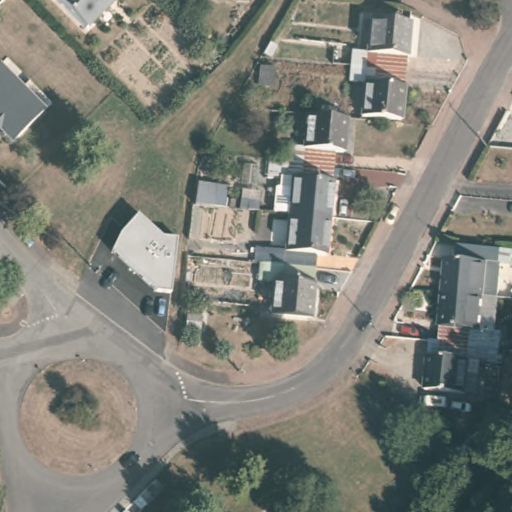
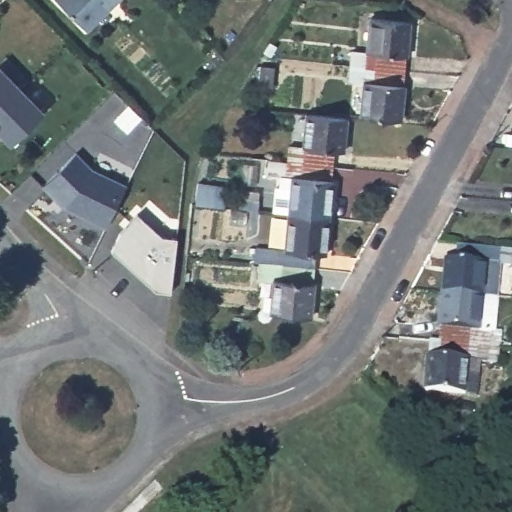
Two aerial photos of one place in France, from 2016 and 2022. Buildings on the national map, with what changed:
unchanged [(109,0),(79,29),(51,0),(109,0)]
unchanged [(350,51),(363,53),(366,20),(407,25),(403,56),(400,56),(398,72),(348,68),(350,51)]
unchanged [(0,136),(0,67),(1,66),(44,111),(9,146),(0,136)]
unchanged [(397,86),(399,86),(394,121),(354,116),(359,85),(346,84),(348,68),(398,72),(397,86)]
demolished [(226,113),(238,114),(237,134),(224,134),(226,113)]
unchanged [(287,147),(305,149),(308,114),(349,118),(344,151),(335,150),(334,165),(285,160),(287,147)]
new [(39,181),(74,150),(89,167),(123,187),(100,226),(60,204),(51,194),(39,181)]
unchanged [(291,214),(277,213),(279,186),(283,187),(284,175),(285,160),(334,165),(332,182),(334,182),(329,218),(325,254),(316,253),(314,266),(264,261),(265,248),(287,250),(291,214)]
demolished [(188,177),(213,179),(210,204),(185,202),(188,177)]
demolished [(247,195),(261,197),(260,211),(245,209),(247,195)]
unchanged [(170,291),(157,290),(113,252),(138,214),(163,238),(177,238),(170,291)]
unchanged [(499,337),(498,352),(482,350),(445,347),(446,330),(444,330),(448,297),(451,263),(453,263),(454,248),(498,252),(497,266),(506,267),(504,301),(499,301),(497,337),(499,337)]
unchanged [(313,283),(315,283),(310,321),(271,316),(275,278),(263,276),(264,261),(314,266),(313,283)]
unchanged [(481,365),(474,364),(470,399),(432,394),(436,362),(444,363),(445,347),(482,350),(481,365)]

